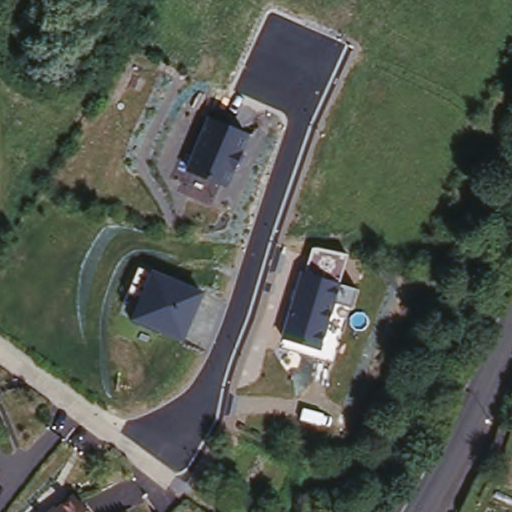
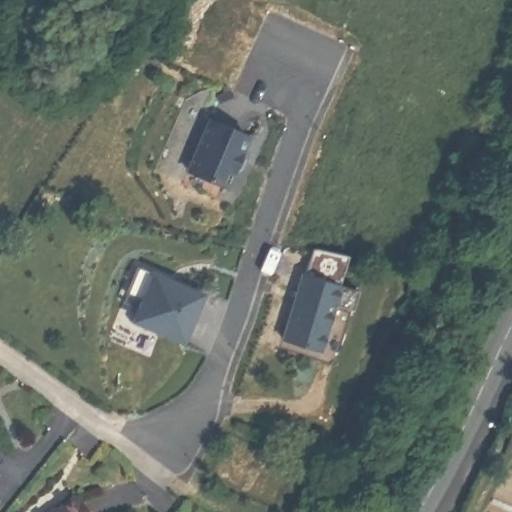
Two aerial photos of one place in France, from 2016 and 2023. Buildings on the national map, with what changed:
unchanged [(209,118),(251,135),(230,187),(187,169),(209,118)]
unchanged [(279,346),(282,336),(300,272),(305,273),(312,247),(317,247),(347,255),(340,283),(357,288),(350,306),(332,363),(279,346)]
unchanged [(184,341),(130,318),(137,304),(125,300),(140,266),(153,270),(204,292),(184,341)]
unchanged [(88,512),(52,512),(74,494),(88,512)]
unchanged [(50,512),(47,512),(49,511),(50,512)]

